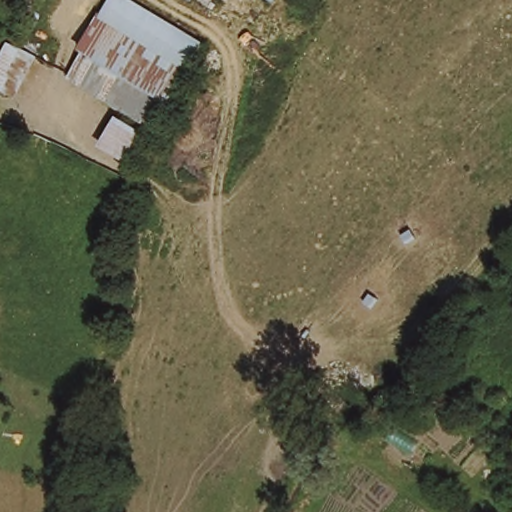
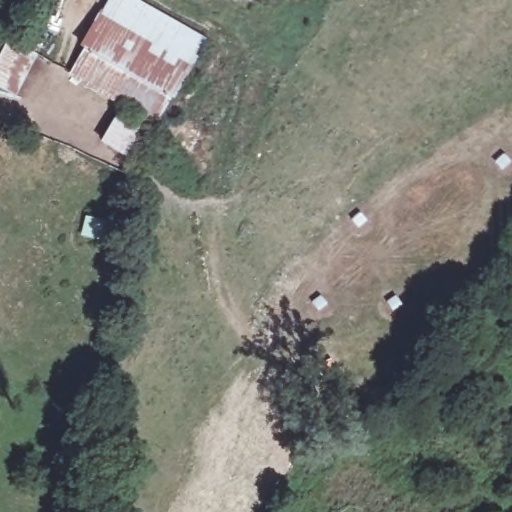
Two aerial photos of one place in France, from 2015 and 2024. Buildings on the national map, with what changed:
unchanged [(67,80),(113,0),(122,0),(202,46),(155,129),(67,80)]
unchanged [(0,53),(6,42),(34,57),(12,97),(0,91),(0,53)]
unchanged [(103,149),(118,123),(144,139),(130,165),(103,149)]

